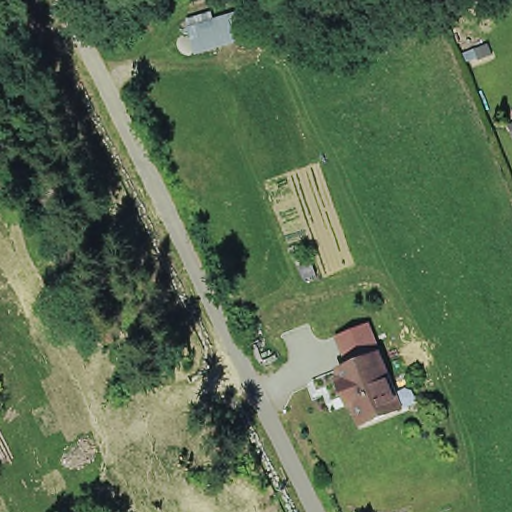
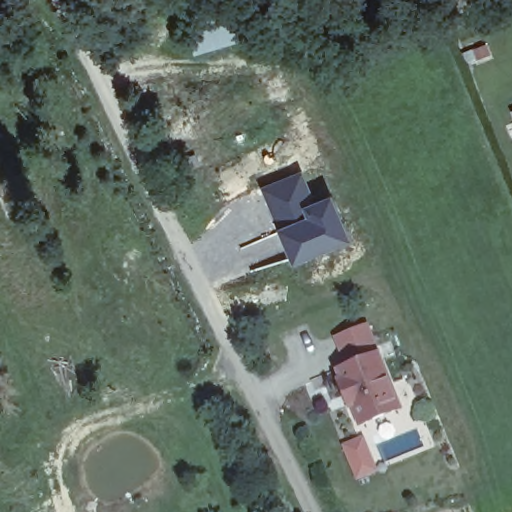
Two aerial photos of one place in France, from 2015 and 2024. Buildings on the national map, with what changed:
unchanged [(188,27),(190,27),(239,11),(244,10),(252,34),(249,35),(200,50),(196,52),(188,27)]
new [(301,168),(315,197),(331,191),(351,239),(293,263),(259,186),(301,168)]
unchanged [(345,399),(339,386),(343,384),(340,372),(349,368),(338,342),(365,331),(376,357),(399,413),(362,428),(360,421),(353,407),(348,409),(345,399)]

